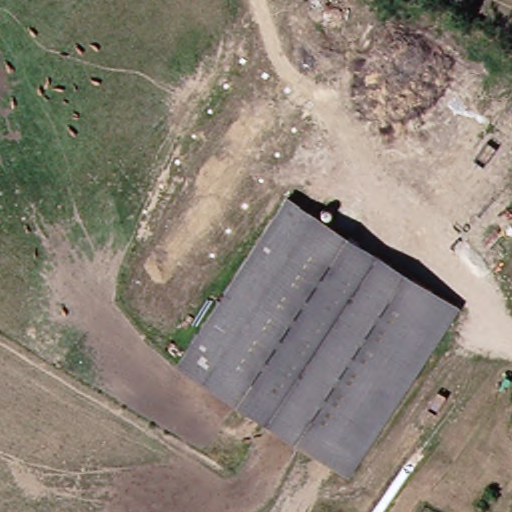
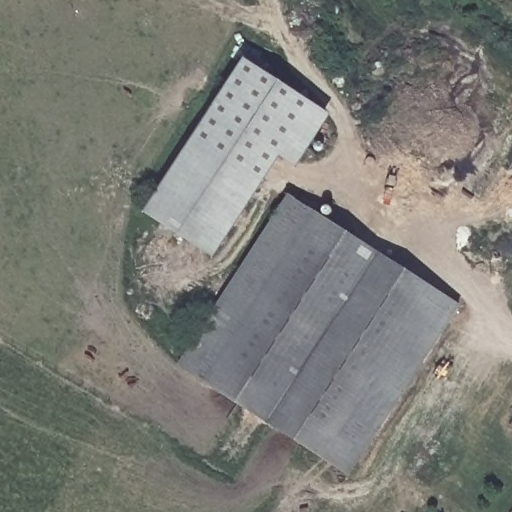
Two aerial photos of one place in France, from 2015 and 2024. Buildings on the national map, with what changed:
new [(330,114),(295,167),(280,156),(213,259),(142,213),(244,58),(330,114)]
unchanged [(285,200),(453,307),(346,472),(176,365),(285,200)]
unchanged [(512,414),(512,436),(502,429),(512,414)]

